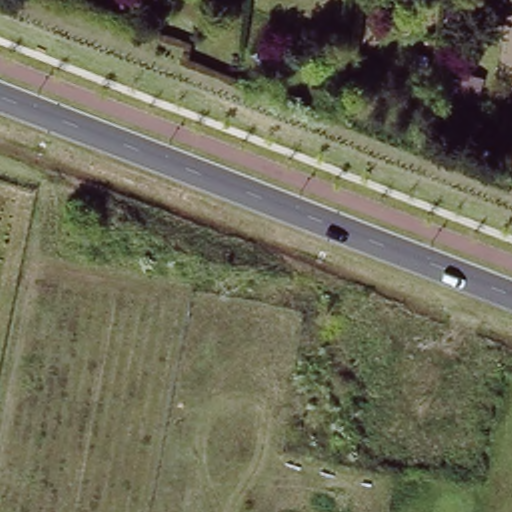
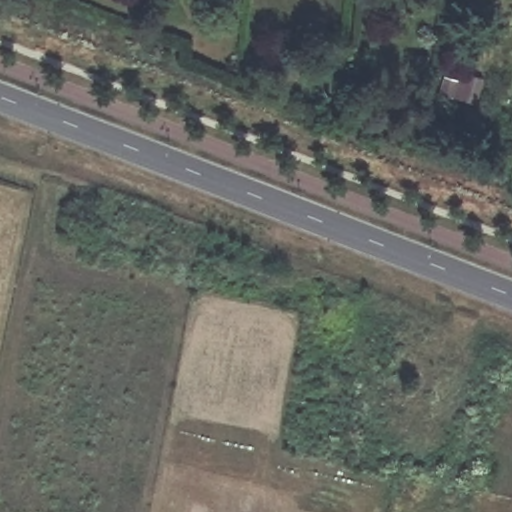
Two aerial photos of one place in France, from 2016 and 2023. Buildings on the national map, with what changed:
unchanged [(459,105),(462,78),(481,80),(477,106),(459,105)]

